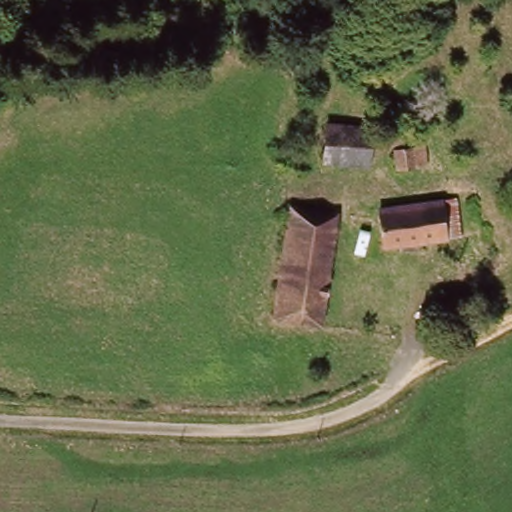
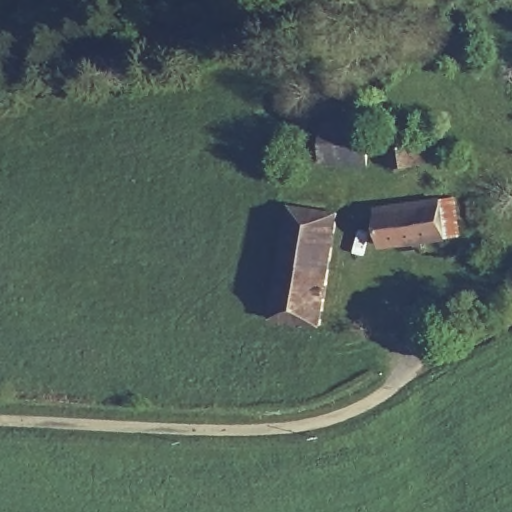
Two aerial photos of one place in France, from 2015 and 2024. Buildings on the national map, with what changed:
unchanged [(320,124),(365,126),(364,164),(319,162),(320,124)]
unchanged [(419,145),(419,164),(388,169),(387,132),(404,132),(405,146),(419,145)]
unchanged [(452,198),(457,236),(382,247),(379,207),(452,198)]
unchanged [(319,323),(318,326),(269,320),(284,210),(335,216),(319,323)]

